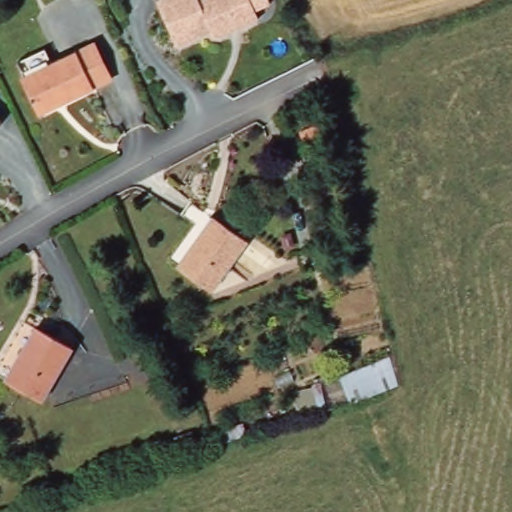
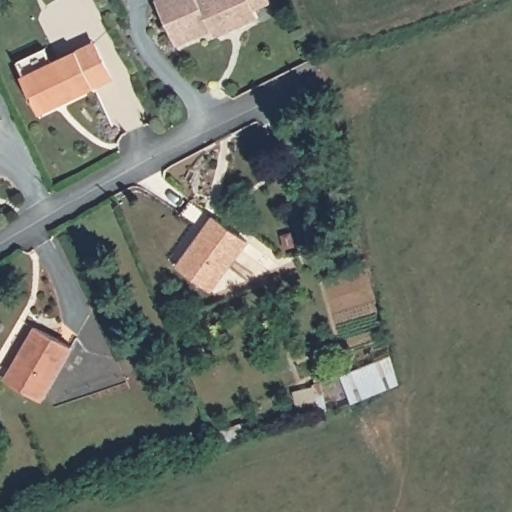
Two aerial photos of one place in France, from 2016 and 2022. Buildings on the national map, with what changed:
unchanged [(154,0),(155,0),(247,0),(255,18),(212,38),(209,31),(175,47),(154,0)]
unchanged [(93,88),(38,113),(21,76),(15,59),(41,47),(49,64),(76,51),(93,88)]
unchanged [(198,223),(185,214),(195,200),(251,240),(216,289),(182,264),(206,230),(198,223)]
unchanged [(71,348),(43,399),(5,377),(35,326),(71,348)]
unchanged [(388,359),(397,382),(350,402),(340,377),(388,359)]
unchanged [(242,423),(245,434),(222,441),(219,431),(242,423)]
unchanged [(190,431),(196,448),(179,454),(174,436),(190,431)]

